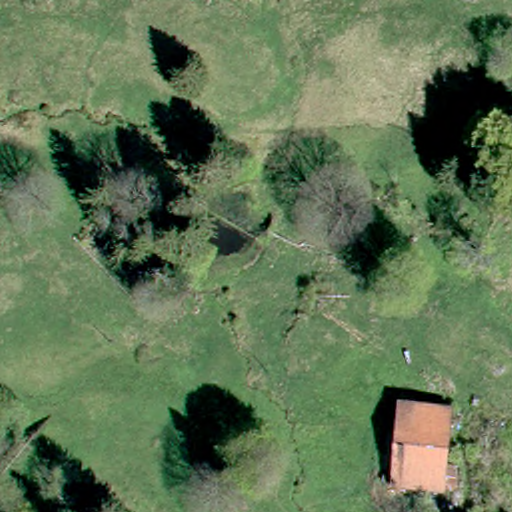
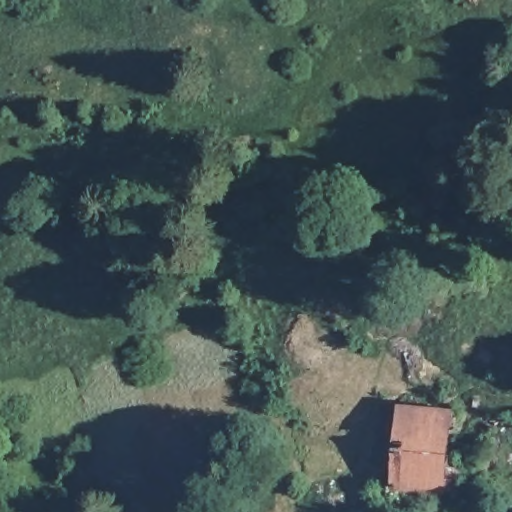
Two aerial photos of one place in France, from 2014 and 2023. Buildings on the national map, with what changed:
unchanged [(452,493),(397,490),(402,410),(458,414),(452,493)]

